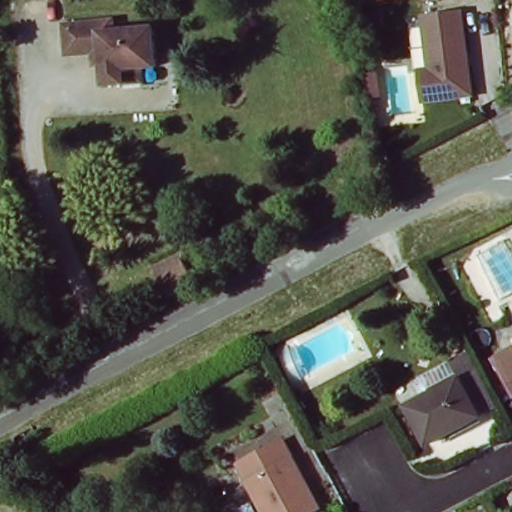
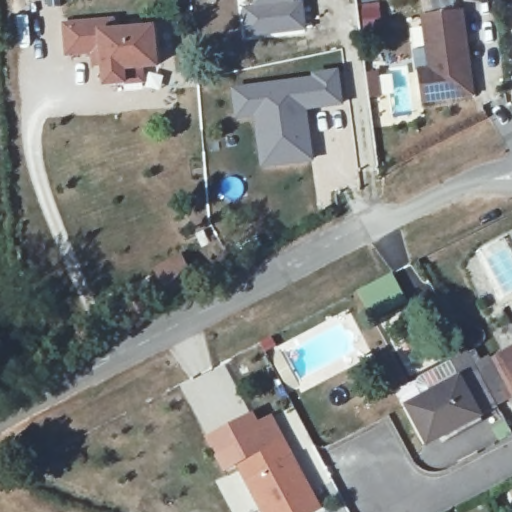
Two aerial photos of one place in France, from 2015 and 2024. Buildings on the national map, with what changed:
new [(251,1),(250,0),(303,0),(306,31),(243,39),(240,3),(251,1)]
unchanged [(478,95),(429,104),(423,74),(435,72),(425,19),(462,12),(470,52),(472,65),(478,95)]
unchanged [(123,78),(105,80),(103,61),(92,62),(90,49),(67,52),(65,22),(98,20),(111,19),(113,29),(153,24),(158,64),(141,66),(142,76),(123,78)]
new [(310,74),(340,67),(345,106),(309,111),(315,162),(260,169),(253,118),(235,119),(230,86),(310,74)]
demolished [(346,187),(339,132),(372,127),(380,181),(346,187)]
unchanged [(169,301),(161,284),(156,274),(185,259),(191,269),(200,285),(169,301)]
unchanged [(512,345),(512,378),(508,380),(501,364),(508,359),(504,350),(512,345)]
unchanged [(488,402),(431,432),(410,393),(466,363),(488,402)]
unchanged [(280,437),(317,508),(309,512),(260,512),(231,460),(280,437)]

